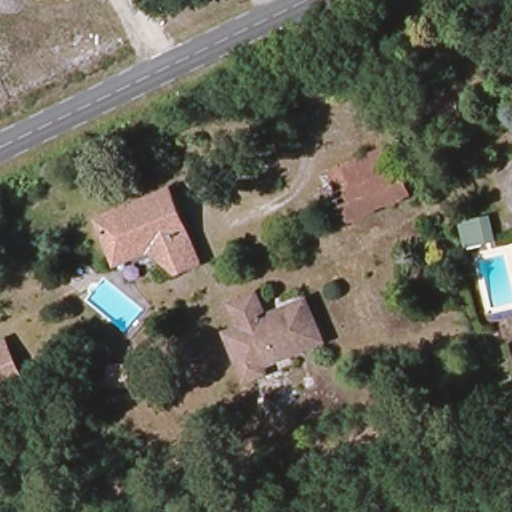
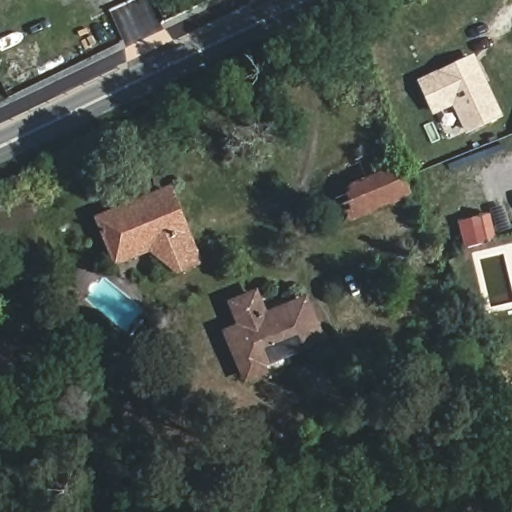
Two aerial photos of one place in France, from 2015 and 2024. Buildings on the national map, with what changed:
new [(475,58),(501,115),(470,129),(457,101),(437,110),(423,82),(475,58)]
unchanged [(316,195),(330,192),(326,174),(392,145),(411,195),(327,225),(316,195)]
unchanged [(167,276),(156,252),(115,267),(94,214),(167,182),(201,262),(167,276)]
unchanged [(236,328),(225,304),(257,290),(267,314),(308,298),(327,346),(269,365),(273,376),(246,389),(223,334),(236,328)]
unchanged [(0,400),(0,340),(6,338),(27,389),(0,400)]

